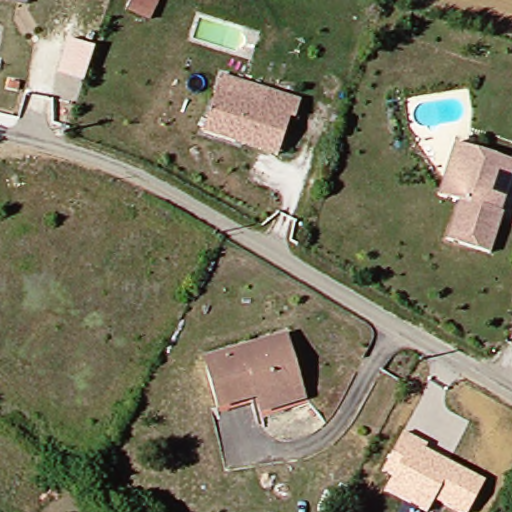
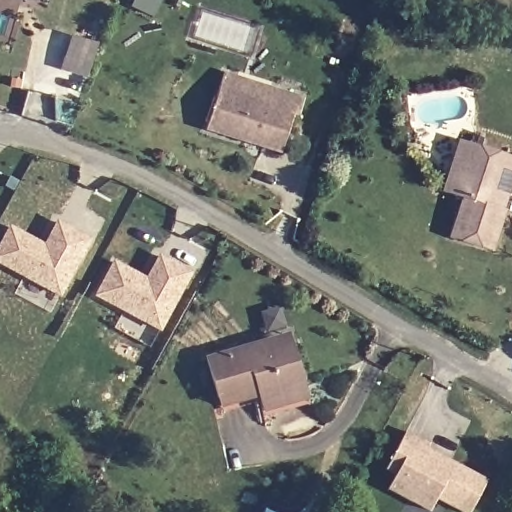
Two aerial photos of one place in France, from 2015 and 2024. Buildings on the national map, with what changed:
unchanged [(152,17),(132,7),(135,0),(160,0),(152,17)]
new [(74,35),(100,45),(89,76),(63,67),(74,35)]
unchanged [(238,141),(208,133),(219,92),(224,76),(269,90),(302,100),(297,115),(292,115),(288,134),(282,154),(238,141)]
unchanged [(495,252),(454,238),(466,198),(458,196),(447,193),(463,143),(474,146),(512,160),(512,197),(508,213),(495,252)]
new [(0,268),(0,242),(9,226),(43,245),(56,220),(91,241),(58,300),(0,268)]
new [(159,334),(93,298),(113,261),(145,278),(158,254),(192,274),(159,334)]
unchanged [(220,407),(204,365),(223,358),(243,350),(265,342),(283,335),(285,338),(289,348),(299,374),(303,386),(309,399),(282,408),(266,414),(262,402),(242,410),(222,416),(220,407)]
unchanged [(426,448),(485,478),(469,512),(457,512),(434,501),(429,512),(426,512),(383,490),(391,475),(380,469),(402,430),(428,443),(426,448)]

